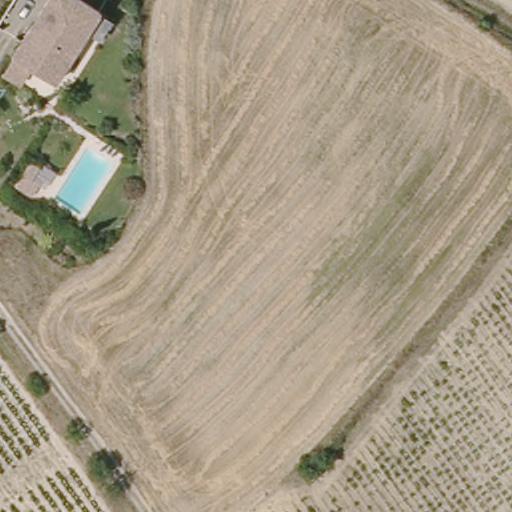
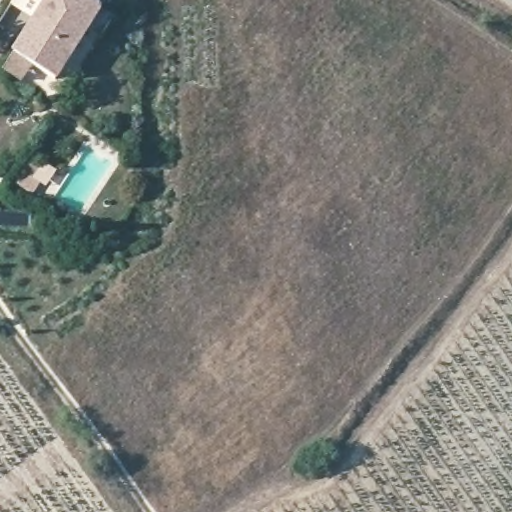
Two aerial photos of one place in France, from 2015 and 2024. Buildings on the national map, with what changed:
unchanged [(29,27),(44,0),(82,0),(100,10),(72,53),(29,27)]
unchanged [(58,81),(13,55),(29,27),(72,53),(58,81)]
unchanged [(35,154),(57,166),(40,195),(17,182),(35,154)]

